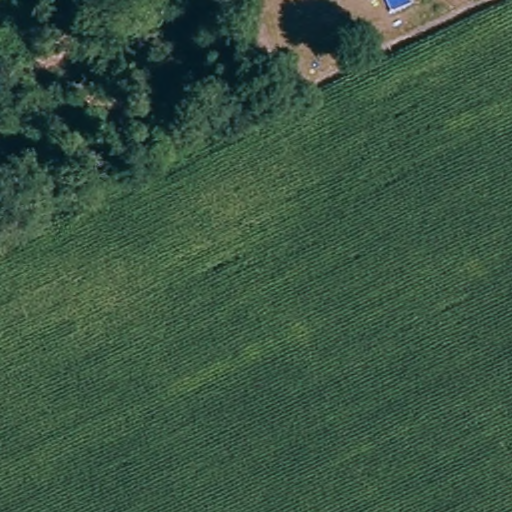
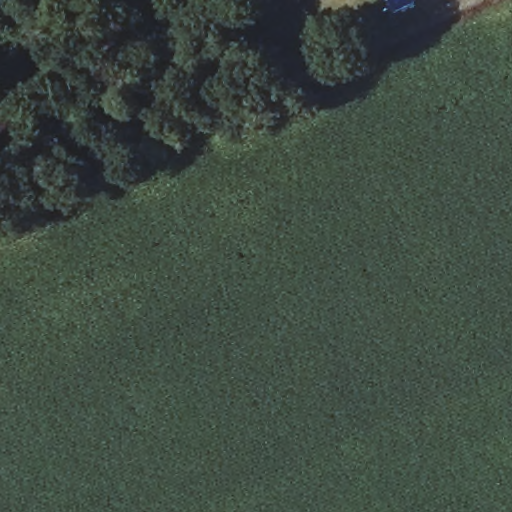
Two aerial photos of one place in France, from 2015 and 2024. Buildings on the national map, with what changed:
[]

